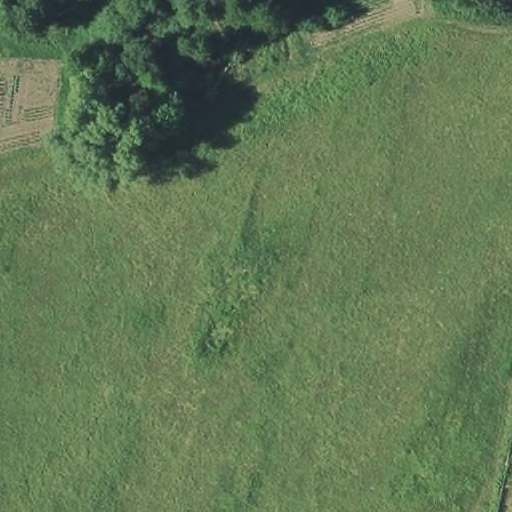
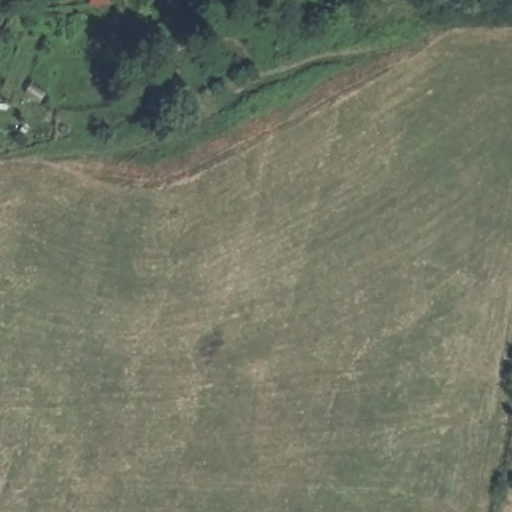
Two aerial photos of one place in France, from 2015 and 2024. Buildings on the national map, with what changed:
[]

